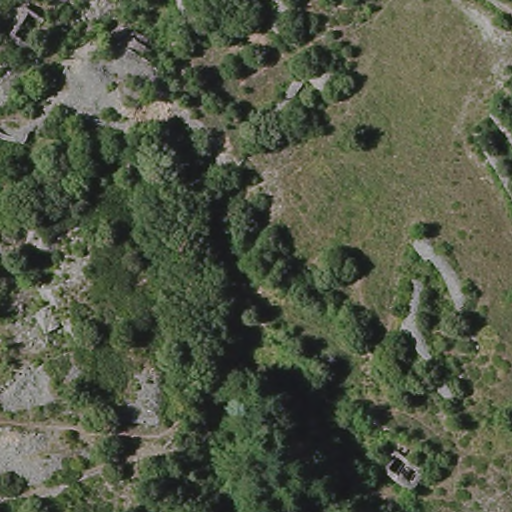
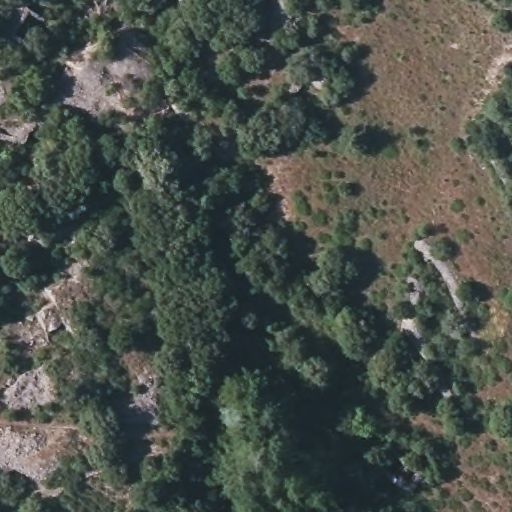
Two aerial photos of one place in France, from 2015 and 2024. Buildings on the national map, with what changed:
unchanged [(425,474),(412,490),(390,472),(385,467),(398,452),(425,474)]

